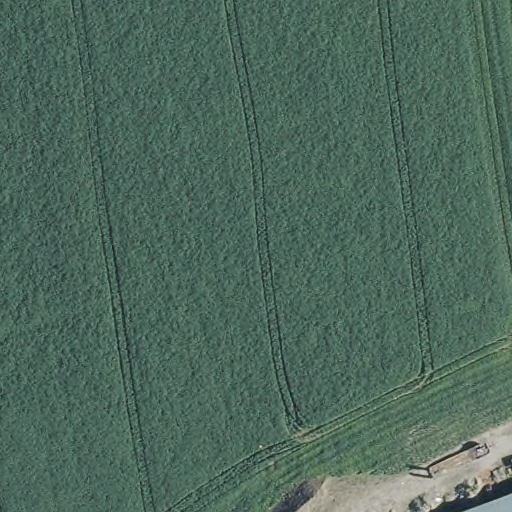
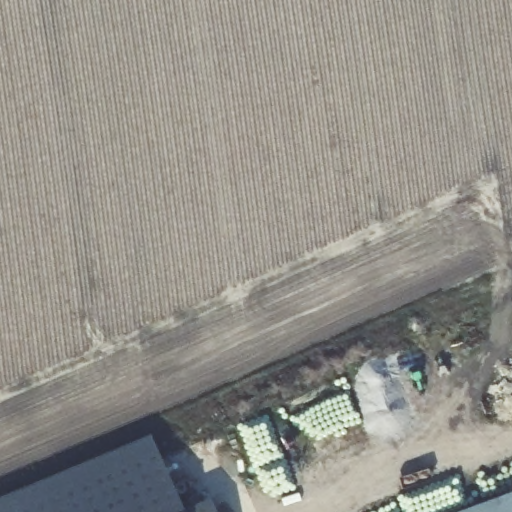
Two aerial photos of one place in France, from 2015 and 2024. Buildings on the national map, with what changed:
new [(181,510),(209,499),(214,512),(0,512),(0,499),(150,436),(181,510)]
unchanged [(463,512),(512,493),(512,512),(463,512)]

